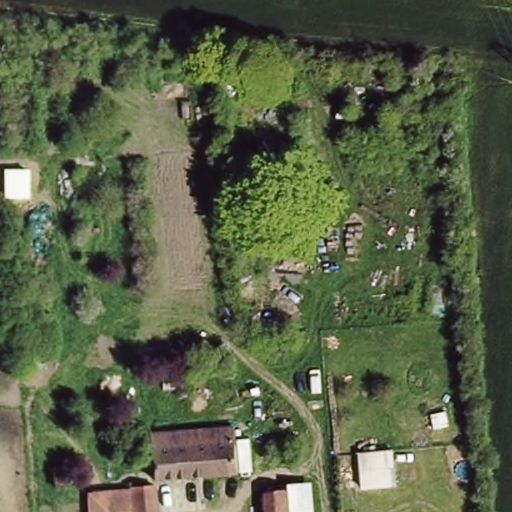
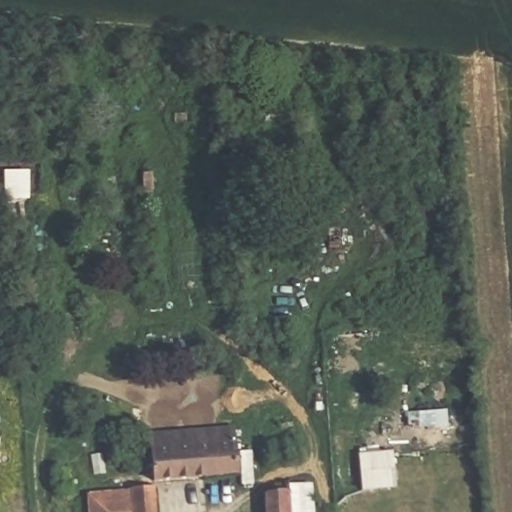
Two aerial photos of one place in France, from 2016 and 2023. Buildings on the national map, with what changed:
unchanged [(153,433),(193,429),(194,444),(255,439),(258,468),(157,477),(153,433)]
unchanged [(397,454),(399,487),(365,489),(363,456),(397,454)]
unchanged [(107,459),(109,480),(93,482),(91,461),(107,459)]
unchanged [(66,473),(68,491),(57,491),(56,474),(66,473)]
unchanged [(315,484),(319,512),(266,512),(265,488),(315,484)]
unchanged [(155,489),(158,512),(87,512),(86,494),(155,489)]

